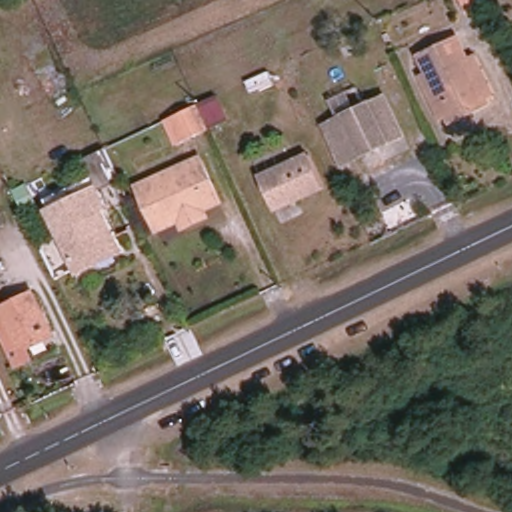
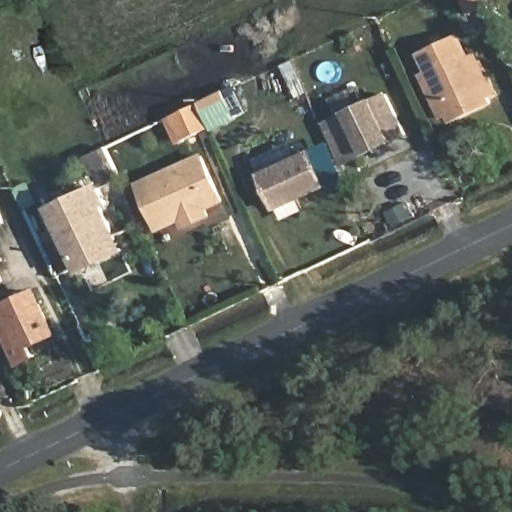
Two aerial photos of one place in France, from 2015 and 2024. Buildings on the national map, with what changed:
unchanged [(484,0),(487,6),(481,10),(468,16),(461,0),(484,0)]
unchanged [(419,56),(457,38),(489,104),(450,121),(419,56)]
unchanged [(363,51),(344,60),(339,49),(358,40),(363,51)]
unchanged [(321,127),(385,96),(402,135),(338,166),(321,127)]
unchanged [(181,142),(169,118),(197,105),(208,129),(181,142)]
unchanged [(82,159),(104,148),(118,180),(97,190),(82,159)]
unchanged [(219,201),(202,209),(205,217),(182,228),(172,208),(150,218),(136,187),(199,158),(219,201)]
unchanged [(327,193),(277,215),(262,183),(312,160),(327,193)]
unchanged [(99,207),(115,240),(93,251),(98,262),(76,270),(51,210),(97,190),(104,205),(99,207)]
unchanged [(0,330),(0,303),(31,289),(50,327),(27,338),(34,353),(15,362),(0,330)]

